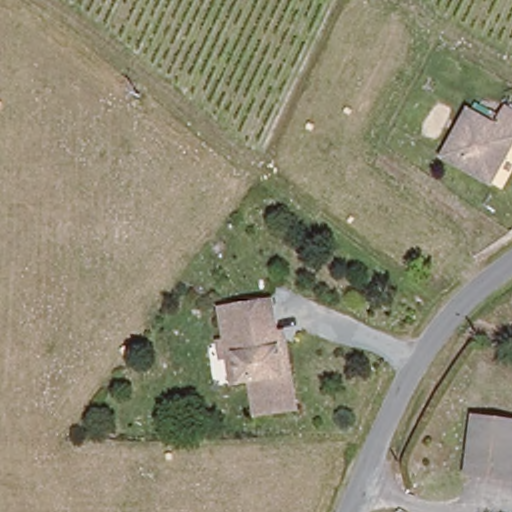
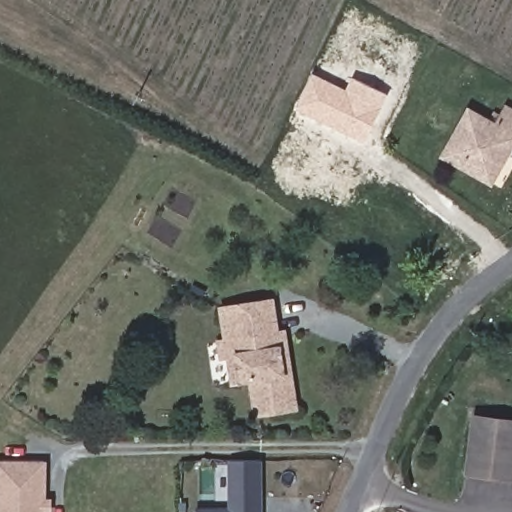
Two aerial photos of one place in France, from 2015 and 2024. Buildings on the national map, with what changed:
new [(387,94),(363,143),(294,109),(311,73),(344,89),(351,78),(387,94)]
unchanged [(499,127),(511,110),(512,110),(512,150),(491,182),(445,154),(473,111),(499,127)]
unchanged [(275,298),(280,326),(270,328),(273,346),(281,345),(283,367),(290,366),(295,406),(254,411),(250,380),(231,382),(221,307),(275,298)]
unchanged [(512,482),(468,478),(472,414),(512,417),(512,482)]
new [(46,461),(46,499),(51,499),(51,512),(0,512),(0,461),(46,461)]
new [(221,509),(221,504),(214,504),(214,461),(260,461),(261,512),(197,512),(197,509),(221,509)]

